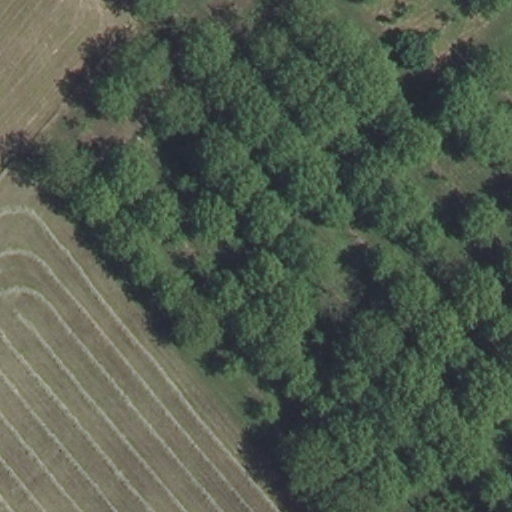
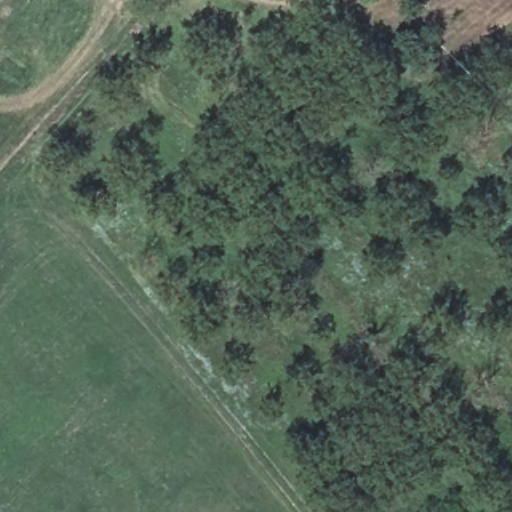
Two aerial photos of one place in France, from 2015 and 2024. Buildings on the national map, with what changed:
[]

